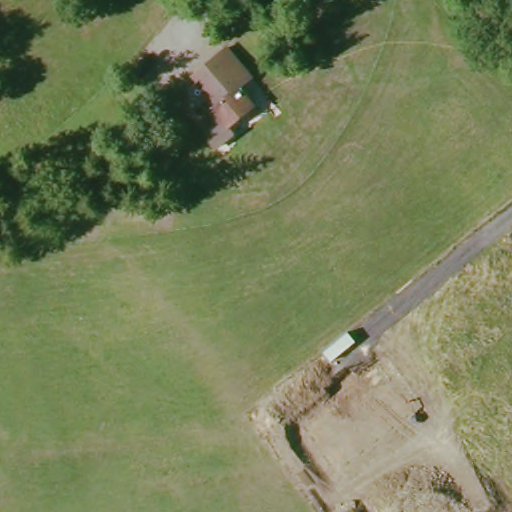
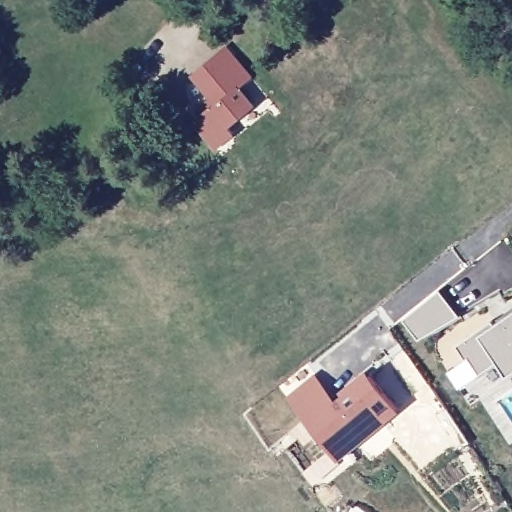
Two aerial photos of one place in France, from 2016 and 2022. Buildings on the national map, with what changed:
unchanged [(235,130),(240,137),(222,149),(204,127),(209,121),(204,115),(217,102),(197,77),(229,51),(254,81),(242,89),(259,108),(235,130)]
new [(420,339),(402,319),(439,290),(460,316),(420,339)]
new [(497,362),(458,389),(447,372),(464,359),(454,345),(475,330),(479,334),(512,311),(512,370),(507,374),(497,362)]
new [(340,460),(289,396),(315,373),(337,399),(368,373),(399,412),(340,460)]

